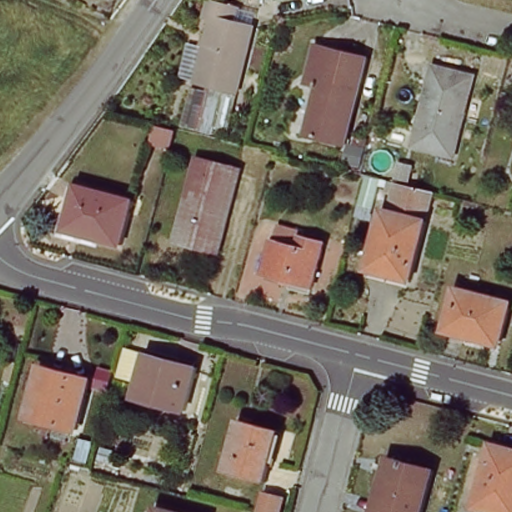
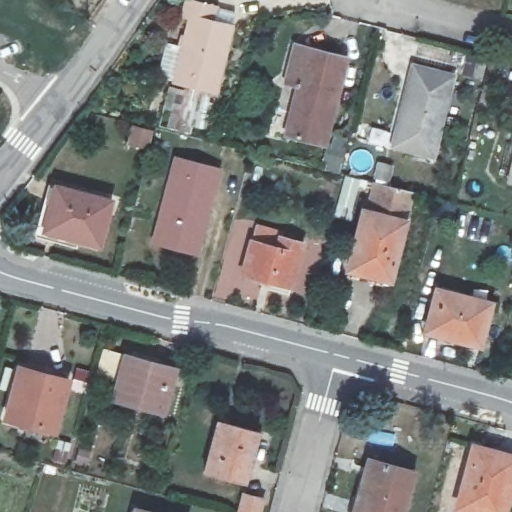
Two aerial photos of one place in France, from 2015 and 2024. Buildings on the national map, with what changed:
unchanged [(163,126),(172,97),(175,86),(156,79),(164,42),(177,44),(186,0),(191,0),(219,8),(216,19),(235,25),(214,97),(202,96),(192,136),(163,126)]
unchanged [(346,65),(325,151),(284,142),(297,94),(284,91),(294,53),(346,65)]
unchanged [(451,80),(432,157),(391,147),(409,69),(451,80)]
unchanged [(512,140),(512,153),(509,152),(512,140)]
unchanged [(196,255),(151,243),(177,156),(218,167),(196,255)]
unchanged [(96,246),(44,230),(58,187),(110,204),(96,246)]
unchanged [(411,198),(388,285),(346,274),(361,216),(370,217),(377,190),(411,198)]
unchanged [(287,229),(282,244),(304,250),(292,292),(246,279),(261,223),(287,229)]
unchanged [(486,301),(472,354),(429,343),(445,289),(486,301)]
unchanged [(157,414),(111,401),(123,358),(170,374),(157,414)]
unchanged [(51,433),(3,419),(19,369),(66,384),(51,433)]
unchanged [(248,479),(203,466),(215,425),(259,438),(248,479)]
unchanged [(456,512),(474,448),(512,459),(512,474),(501,512),(456,512)]
unchanged [(360,512),(365,497),(356,494),(368,457),(412,470),(400,512),(360,512)]
unchanged [(265,512),(238,512),(245,494),(269,501),(265,512)]
unchanged [(134,512),(135,509),(144,512),(134,512)]

